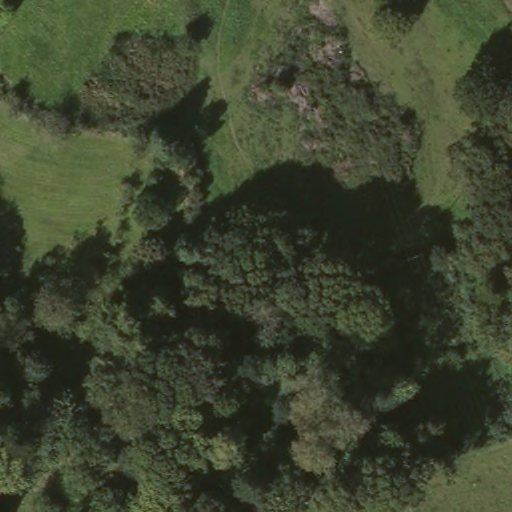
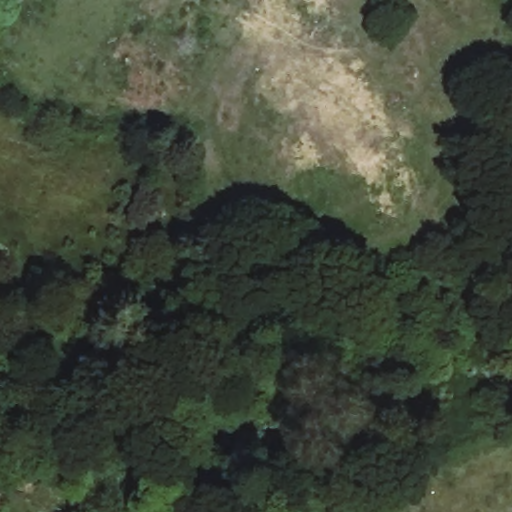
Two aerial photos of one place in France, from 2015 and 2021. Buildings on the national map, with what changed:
unchanged [(0,512),(0,494),(4,495),(0,512)]

